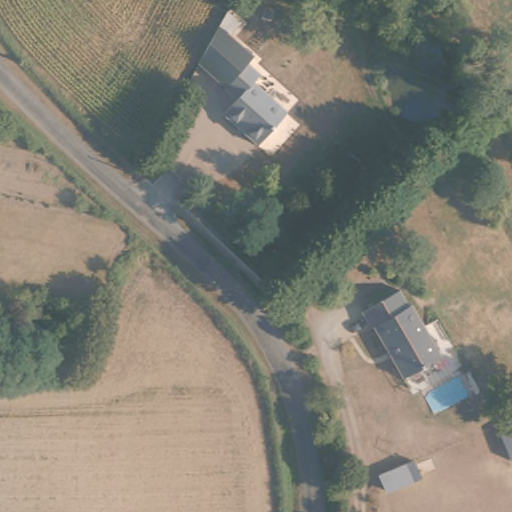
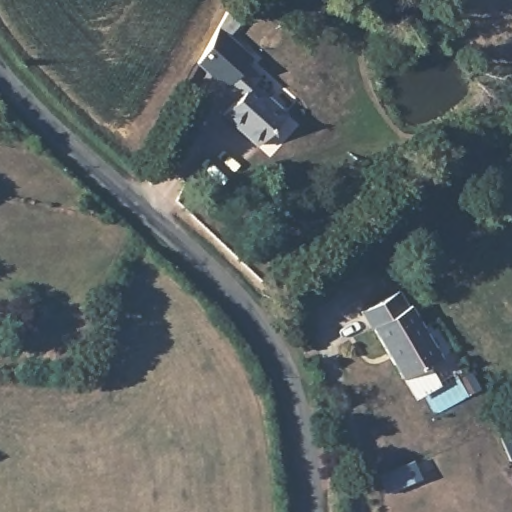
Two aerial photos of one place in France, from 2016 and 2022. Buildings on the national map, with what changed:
unchanged [(198,56),(226,6),(241,15),(230,31),(252,53),(245,61),(259,71),(252,79),(285,110),(255,140),(223,110),(236,95),(224,83),(225,82),(217,75),(198,56)]
unchanged [(423,324),(436,317),(454,347),(402,376),(372,326),(370,327),(360,310),(391,294),(400,290),(408,305),(411,304),(423,324)]

